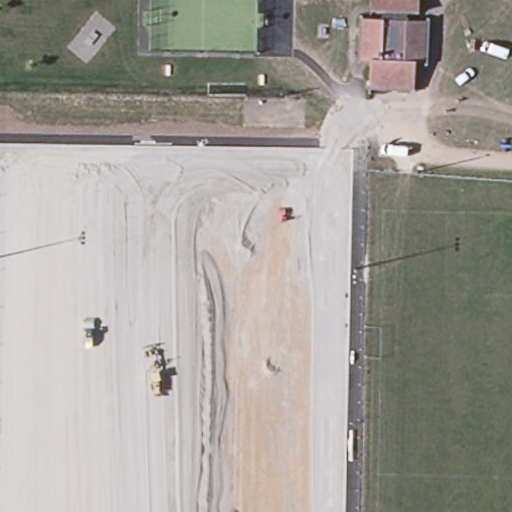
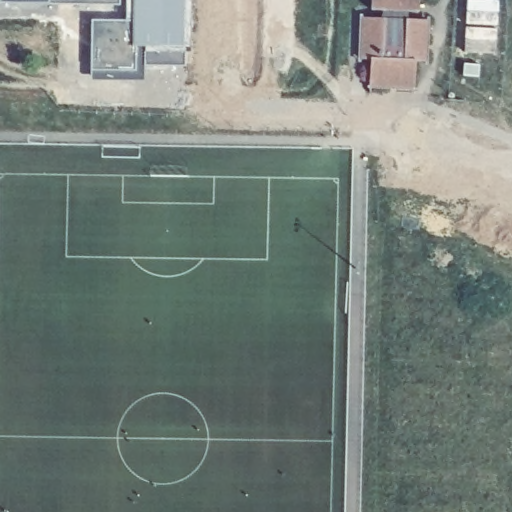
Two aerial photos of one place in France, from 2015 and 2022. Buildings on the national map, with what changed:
new [(111,10),(0,6),(0,0),(111,0),(111,10)]
new [(188,50),(132,56),(133,71),(91,72),(90,26),(124,26),(124,0),(189,0),(188,50)]
unchanged [(366,9),(367,0),(413,0),(413,11),(366,9)]
unchanged [(421,19),(420,60),(408,60),(407,87),(365,86),(365,59),(357,59),(358,18),(421,19)]

